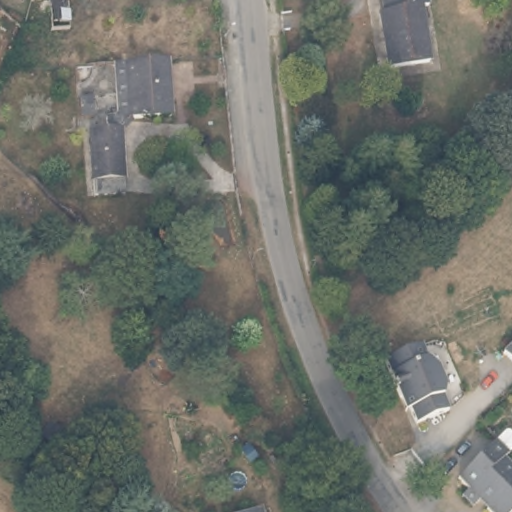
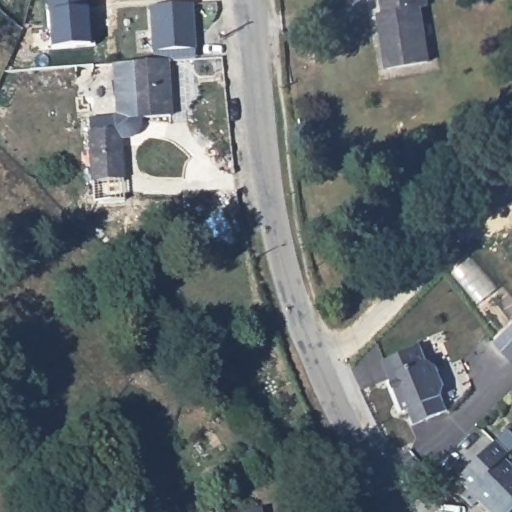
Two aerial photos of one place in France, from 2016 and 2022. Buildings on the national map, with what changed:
new [(84,7),(89,45),(50,48),(47,12),(47,0),(84,0),(84,7)]
demolished [(69,22),(51,24),(50,0),(68,0),(69,22)]
unchanged [(424,68),(383,75),(374,20),(378,19),(375,0),(421,0),(423,12),(415,13),(424,68)]
new [(192,4),(195,50),(153,52),(150,7),(192,4)]
unchanged [(170,116),(129,119),(119,130),(123,193),(93,195),(89,131),(105,130),(104,119),(113,118),(117,114),(114,64),(167,61),(170,116)]
unchanged [(512,344),(512,362),(503,353),(512,344)]
unchanged [(399,398),(384,362),(421,346),(427,361),(437,367),(445,385),(442,396),(448,411),(415,424),(409,410),(404,412),(399,398)]
unchanged [(460,495),(466,489),(457,480),(505,432),(509,432),(512,435),(512,450),(503,459),(512,468),(512,509),(509,512),(488,512),(484,509),(476,501),(471,506),(460,495)]
unchanged [(257,512),(259,511),(260,512),(257,512)]

